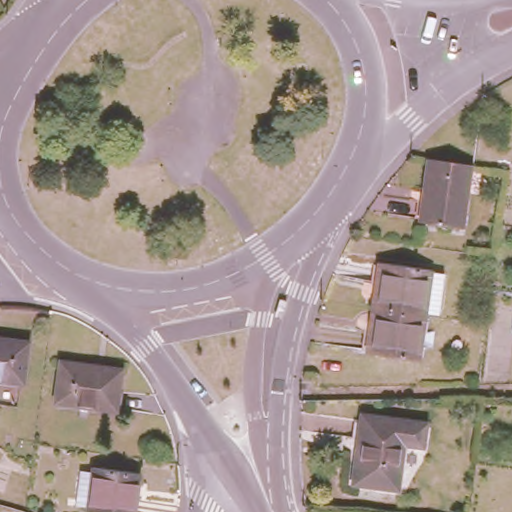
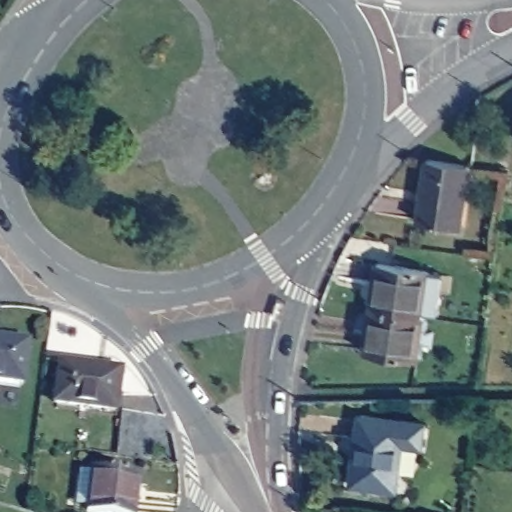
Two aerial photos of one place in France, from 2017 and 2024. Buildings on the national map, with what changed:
unchanged [(463,226),(420,221),(428,160),(472,166),(463,226)]
unchanged [(378,263),(430,270),(430,273),(445,275),(439,318),(425,316),(372,309),(378,263)]
unchanged [(418,361),(366,354),(372,309),(425,316),(418,361)]
unchanged [(31,344),(25,386),(0,382),(0,340),(31,344)]
unchanged [(97,367),(96,372),(120,375),(115,410),(55,404),(60,364),(97,367)]
unchanged [(427,422),(424,446),(405,445),(399,487),(356,482),(363,416),(427,422)]
unchanged [(97,474),(98,470),(143,476),(138,512),(91,512),(92,507),(79,505),(85,472),(97,474)]

